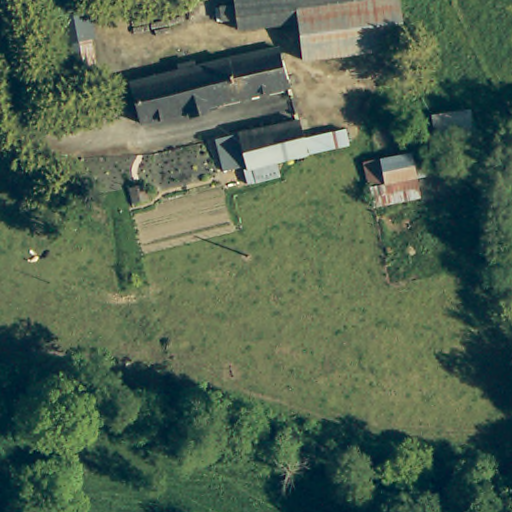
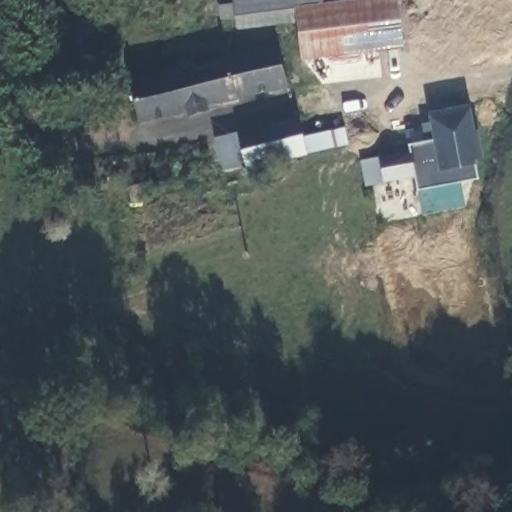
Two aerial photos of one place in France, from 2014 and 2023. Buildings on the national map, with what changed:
unchanged [(87,0),(95,41),(85,42),(59,47),(49,0),(87,0)]
unchanged [(305,56),(300,21),(240,26),(239,16),(222,19),(221,4),(236,2),(236,0),(399,0),(403,46),(305,56)]
unchanged [(85,42),(93,87),(42,95),(36,66),(61,61),(59,47),(85,42)]
unchanged [(290,83),(209,104),(210,111),(191,116),(190,110),(142,121),(132,82),(181,71),(180,64),(195,60),(197,66),(280,45),(290,83)]
new [(476,131),(479,131),(485,157),(476,160),(479,177),(418,189),(415,176),(365,186),(361,160),(410,150),(409,145),(435,140),(429,112),(471,105),(476,131)]
demolished [(475,131),(478,131),(482,131),(488,163),(432,170),(428,141),(436,140),(435,114),(472,110),(475,131)]
unchanged [(258,177),(255,162),(237,165),(221,164),(216,140),(242,134),(241,125),(300,114),(304,134),(347,127),(351,149),(275,160),(278,174),(258,177)]
demolished [(413,150),(420,172),(415,174),(390,179),(383,157),(413,150)]
unchanged [(152,195),(137,200),(130,184),(147,180),(152,195)]

